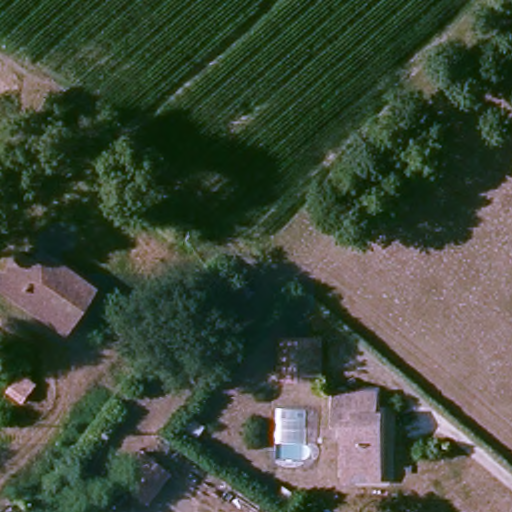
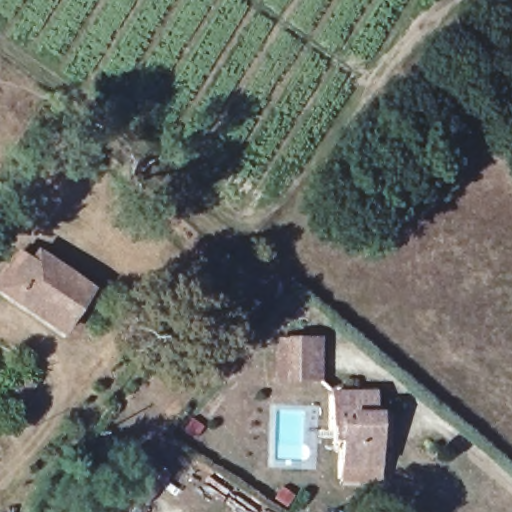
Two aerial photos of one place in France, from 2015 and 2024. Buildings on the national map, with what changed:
unchanged [(30,256),(42,265),(49,254),(107,292),(75,340),(4,292),(30,256)]
unchanged [(290,387),(290,377),(289,377),(284,336),(315,332),(322,373),(323,383),(290,387)]
unchanged [(21,372),(37,386),(25,400),(9,386),(21,372)]
unchanged [(374,398),(374,416),(387,416),(392,464),(355,468),(352,432),(339,433),(336,403),(374,398)]

